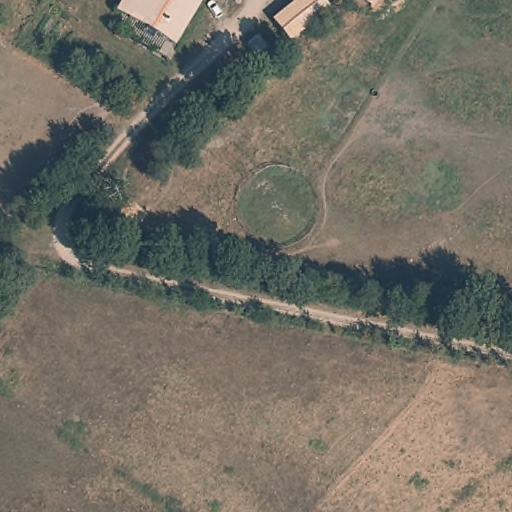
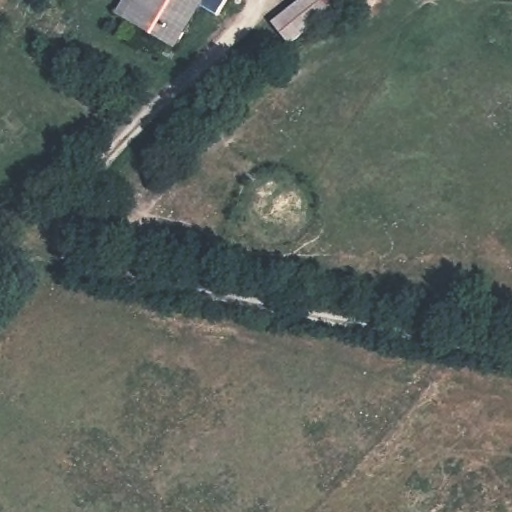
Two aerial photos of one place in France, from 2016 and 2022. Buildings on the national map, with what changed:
unchanged [(126,0),(204,0),(176,48),(130,21),(118,13),(126,0)]
unchanged [(303,0),(321,0),(330,11),(291,43),(274,23),(303,0)]

